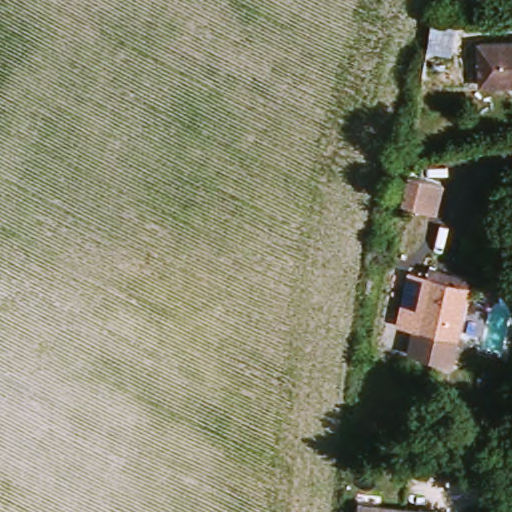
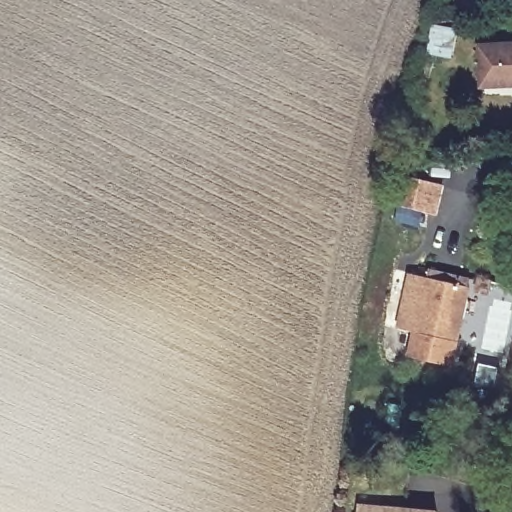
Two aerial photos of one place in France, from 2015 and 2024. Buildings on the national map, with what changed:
unchanged [(480,12),(450,3),(451,0),(482,0),(480,12)]
unchanged [(477,50),(512,45),(512,90),(497,92),(484,95),(482,84),(477,50)]
unchanged [(432,207),(417,203),(422,182),(437,185),(432,207)]
unchanged [(474,361),(456,356),(454,365),(414,354),(418,334),(431,282),(435,266),(477,277),(470,302),(487,306),(474,361)]
unchanged [(409,278),(431,282),(418,334),(397,329),(409,278)]
unchanged [(359,512),(360,504),(438,510),(438,512),(359,512)]

